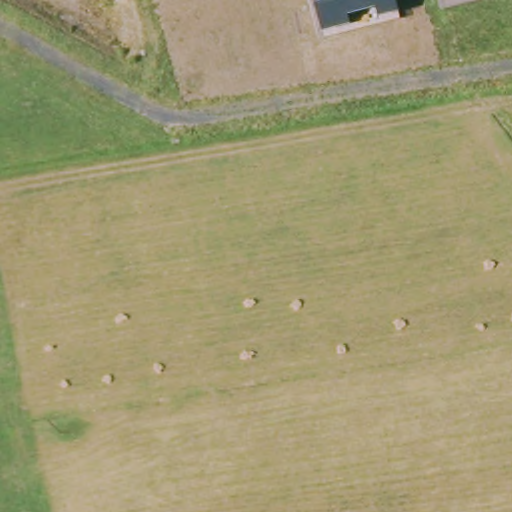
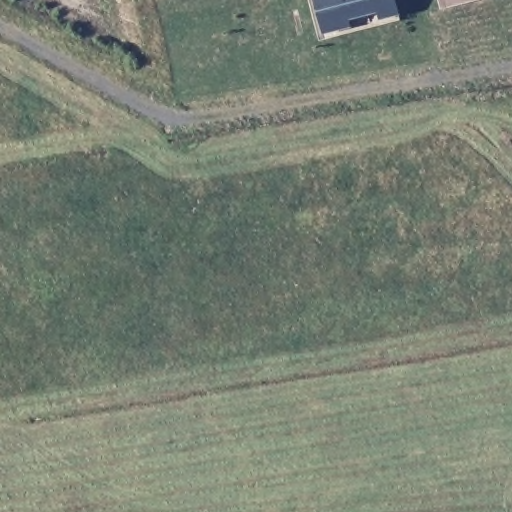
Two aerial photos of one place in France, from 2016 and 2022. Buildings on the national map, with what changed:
unchanged [(377,12),(350,18),(352,25),(323,33),(314,0),(396,0),(400,12),(380,19),(377,12)]

